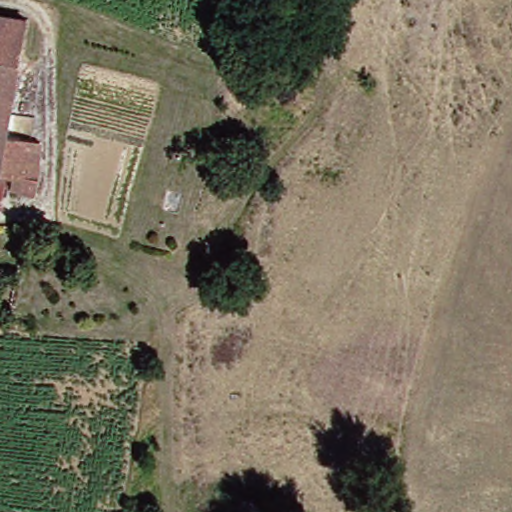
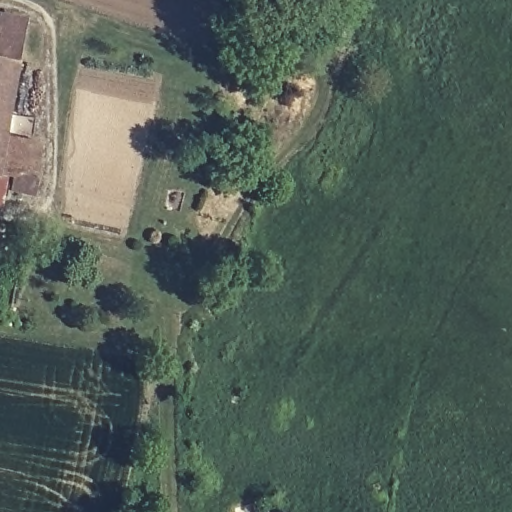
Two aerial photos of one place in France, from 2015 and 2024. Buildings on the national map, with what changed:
unchanged [(27,26),(18,75),(0,71),(0,22),(27,26)]
unchanged [(18,75),(6,140),(26,144),(20,176),(44,180),(40,199),(16,195),(19,182),(1,179),(0,178),(0,71),(18,75)]
unchanged [(0,184),(0,178),(1,179),(0,184)]

